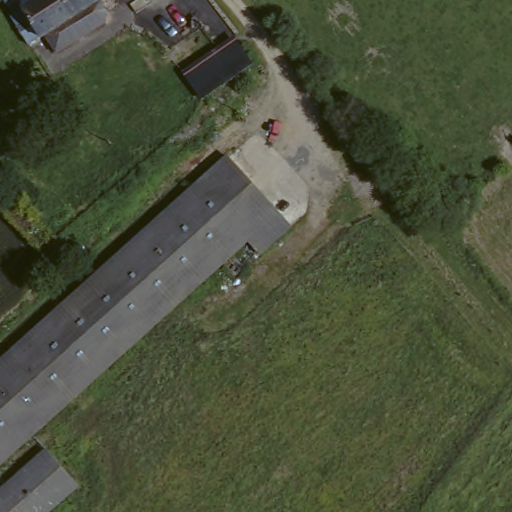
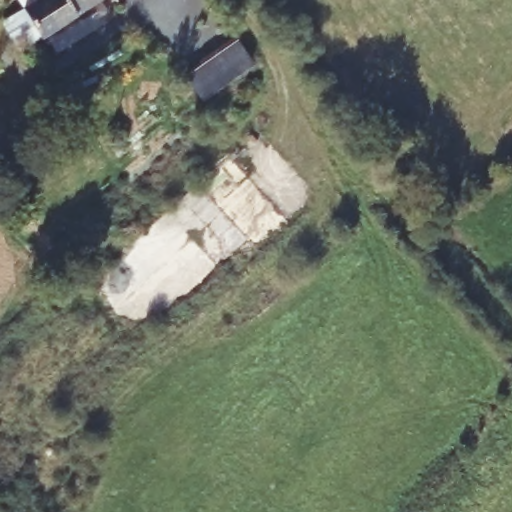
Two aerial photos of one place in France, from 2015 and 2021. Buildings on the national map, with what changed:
unchanged [(62,35),(49,47),(14,0),(35,0),(62,35)]
unchanged [(85,19),(70,32),(69,29),(62,35),(35,0),(110,0),(85,19)]
new [(183,72),(235,36),(252,65),(203,100),(183,72)]
demolished [(0,357),(227,151),(297,225),(247,270),(232,258),(0,474),(0,357)]
demolished [(4,512),(0,509),(0,494),(52,446),(90,480),(57,512),(4,512)]

